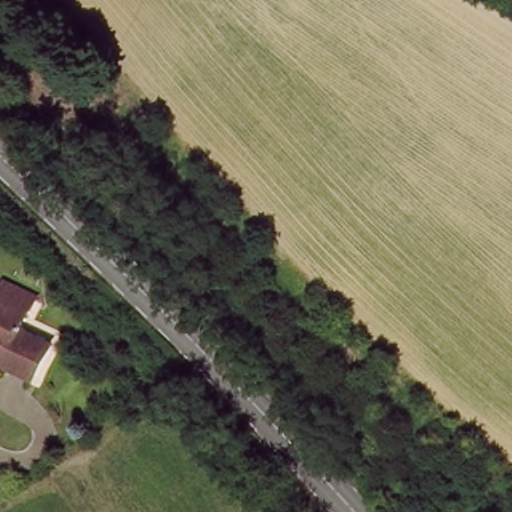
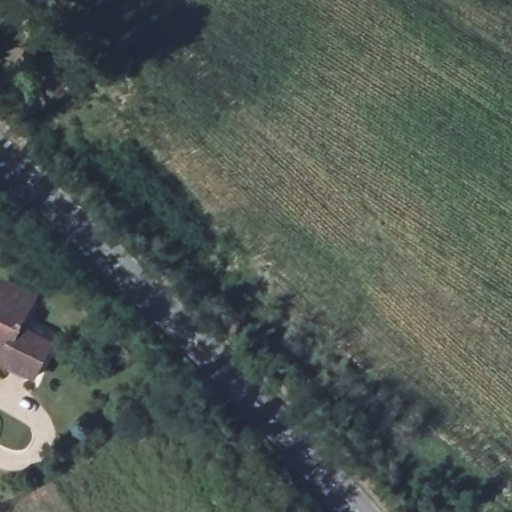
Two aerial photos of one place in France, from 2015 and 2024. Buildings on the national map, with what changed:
unchanged [(2,278),(37,293),(21,324),(54,344),(32,383),(0,365),(0,282),(2,278)]

